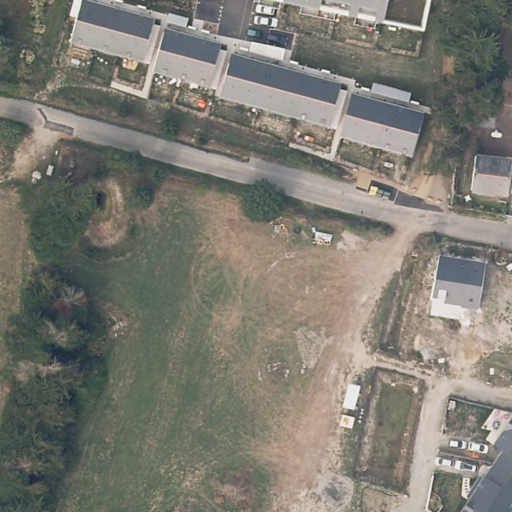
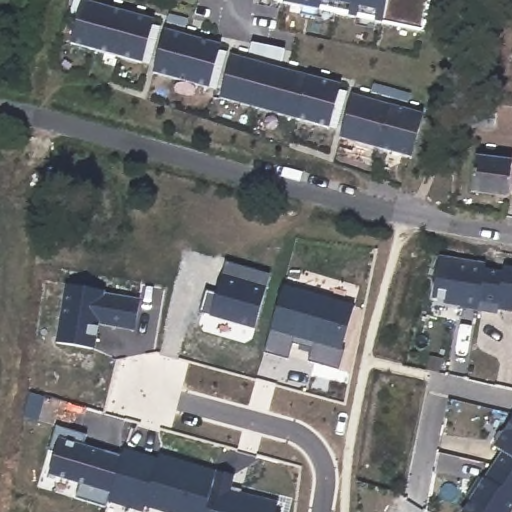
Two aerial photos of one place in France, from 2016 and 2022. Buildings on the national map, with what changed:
unchanged [(154,18),(152,26),(221,44),(219,51),(341,83),(338,91),(424,113),(414,156),(341,138),(343,131),(329,126),(328,129),(297,120),(219,99),(222,91),(154,74),(154,67),(73,44),(83,0),(87,0),(154,18)]
unchanged [(424,30),(383,22),(270,0),(430,0),(424,30)]
unchanged [(498,106),(496,120),(461,116),(462,101),(498,106)]
unchanged [(512,165),(512,201),(477,195),(483,160),(512,165)]
unchanged [(486,262),(479,310),(432,301),(441,256),(486,262)]
new [(506,265),(512,266),(512,310),(499,308),(499,312),(479,309),(484,268),(504,271),(506,265)]
new [(101,323),(96,349),(56,342),(67,282),(106,289),(106,291),(142,297),(135,330),(101,323)]
new [(271,328),(284,285),(354,303),(344,348),(346,348),(340,368),(309,360),(313,347),(295,342),(290,357),(265,351),(271,328)]
unchanged [(461,512),(503,450),(494,445),(512,418),(512,512),(461,512)]
new [(81,482),(49,472),(55,451),(50,448),(57,424),(88,432),(84,442),(105,449),(123,455),(125,447),(159,457),(161,452),(219,466),(214,477),(218,477),(208,512),(166,512),(145,506),(143,512),(106,504),(78,496),(81,482)]

